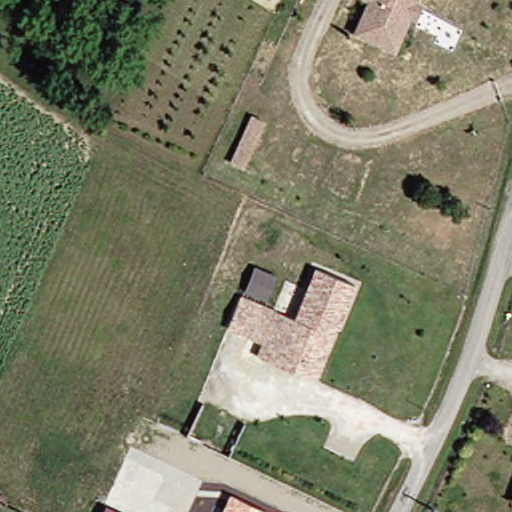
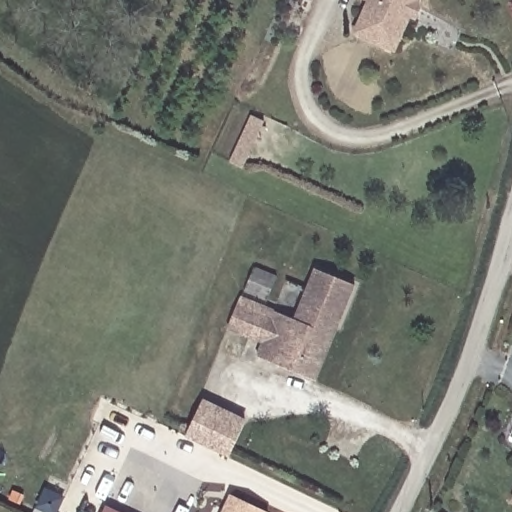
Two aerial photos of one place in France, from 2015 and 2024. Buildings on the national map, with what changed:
unchanged [(395,41),(357,25),(368,0),(413,0),(395,41)]
unchanged [(265,117),(245,164),(231,159),(251,112),(265,117)]
unchanged [(276,364),(255,355),(260,339),(225,324),(234,303),(268,320),(272,308),(291,318),(315,267),(355,283),(335,328),(314,380),(276,364)]
new [(255,267),(279,277),(269,302),(244,293),(255,267)]
new [(246,421),(229,459),(185,438),(204,400),(246,421)]
unchanged [(232,492),(268,509),(267,512),(222,512),(224,508),(232,492)]
unchanged [(119,512),(103,512),(106,506),(119,512)]

